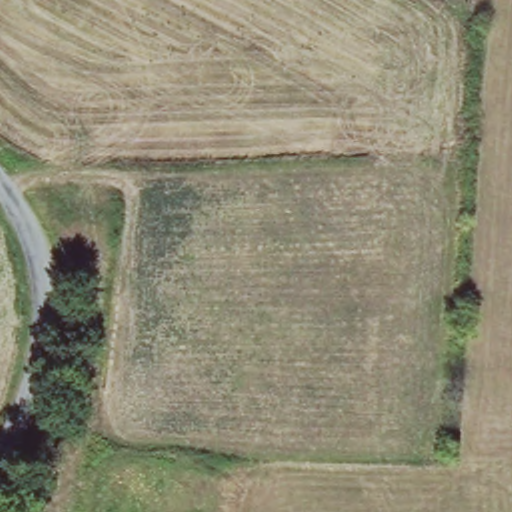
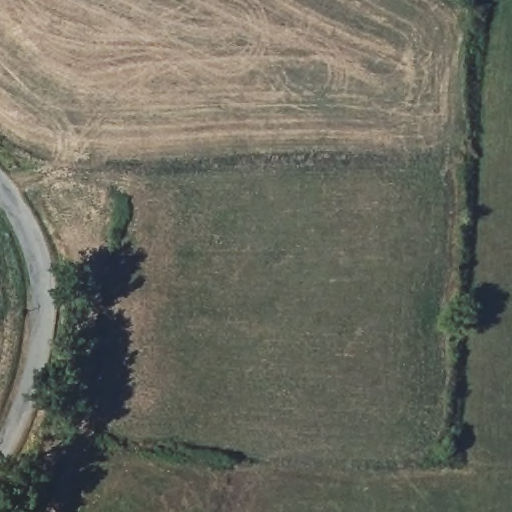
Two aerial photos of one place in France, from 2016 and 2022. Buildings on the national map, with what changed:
[]

